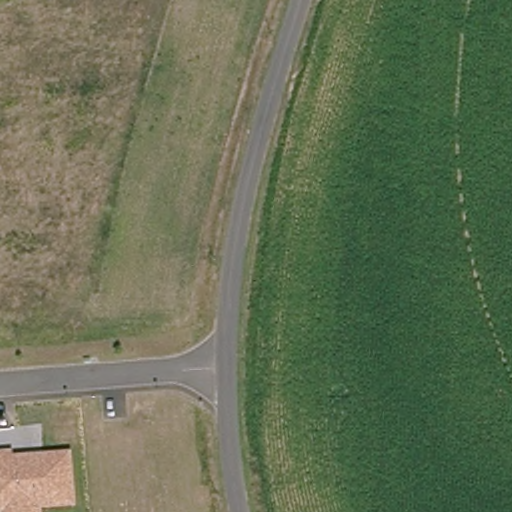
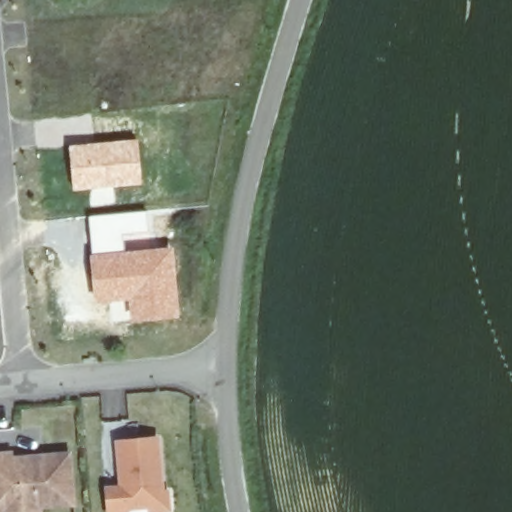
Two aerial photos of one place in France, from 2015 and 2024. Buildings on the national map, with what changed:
new [(139,138),(143,185),(114,187),(116,204),(90,206),(89,190),(72,191),(68,145),(139,138)]
new [(143,210),(143,213),(133,215),(134,224),(129,225),(130,230),(144,230),(145,237),(124,239),(125,250),(90,253),(88,215),(143,210)]
new [(125,250),(174,246),(180,318),(129,322),(127,302),(94,305),(90,253),(125,250)]
new [(159,495),(141,496),(140,490),(115,492),(116,499),(99,500),(97,473),(112,471),(108,427),(147,425),(150,479),(158,478),(159,495)]
unchanged [(14,509),(0,510),(0,455),(10,455),(18,454),(19,459),(77,454),(80,504),(48,506),(48,511),(48,512),(14,512),(14,509)]

